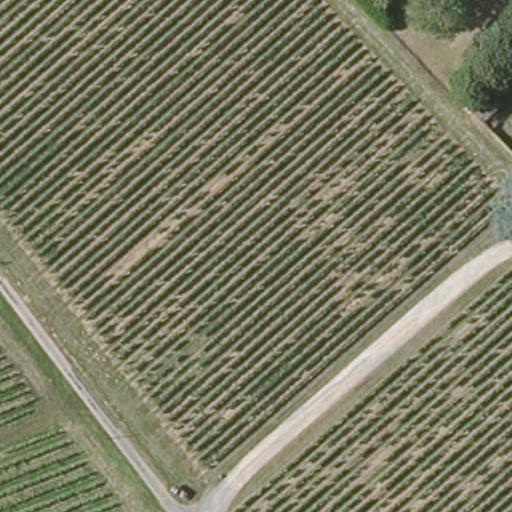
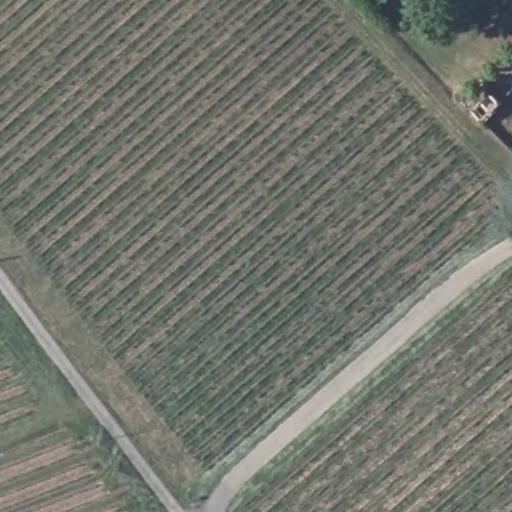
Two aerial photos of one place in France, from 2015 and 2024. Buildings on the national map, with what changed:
unchanged [(492,100),(503,109),(486,130),(474,118),(492,100)]
unchanged [(498,141),(504,135),(511,141),(504,147),(498,141)]

